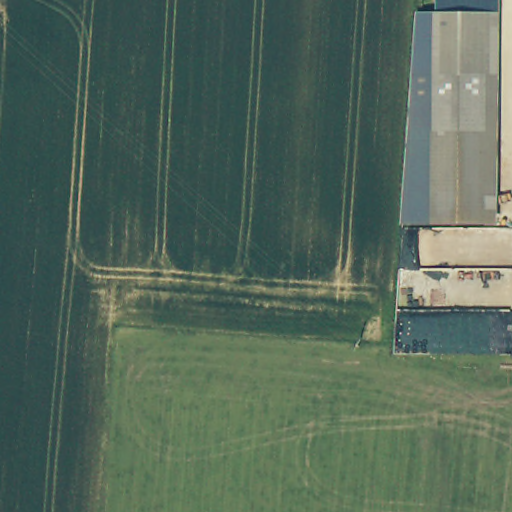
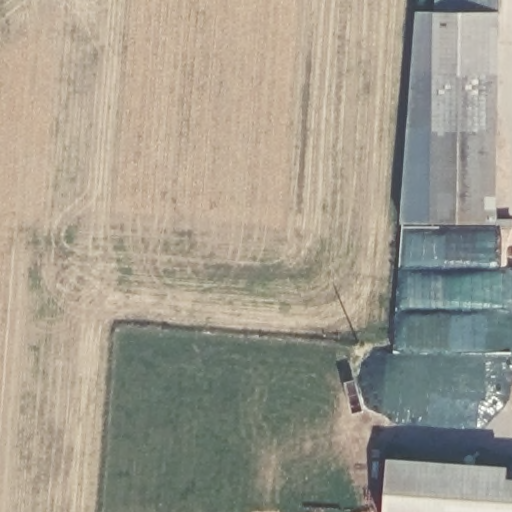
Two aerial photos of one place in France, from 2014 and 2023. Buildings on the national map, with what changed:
unchanged [(493,220),(402,218),(415,8),(495,11),(493,220)]
new [(507,480),(512,480),(512,512),(383,512),(387,460),(509,468),(507,480)]

